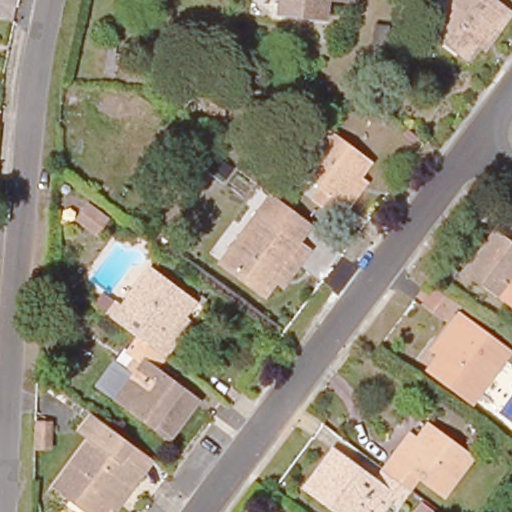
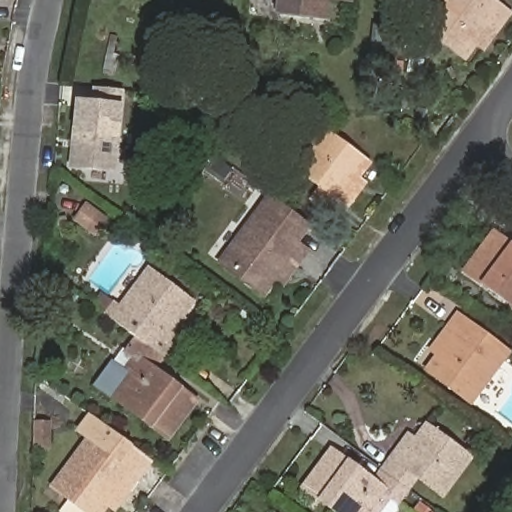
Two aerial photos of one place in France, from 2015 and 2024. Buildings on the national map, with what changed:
unchanged [(325,20),(277,15),(278,0),(326,0),(325,20)]
unchanged [(352,1),(337,0),(352,0),(352,1)]
unchanged [(422,25),(440,0),(490,0),(509,14),(499,27),(492,22),(477,43),(466,58),(422,25)]
unchanged [(132,49),(130,77),(114,77),(115,64),(107,65),(109,48),(132,49)]
new [(125,90),(116,173),(68,169),(75,100),(92,102),(94,87),(125,90)]
unchanged [(213,111),(230,112),(228,126),(211,125),(213,111)]
unchanged [(368,169),(357,183),(341,204),(348,210),(338,223),(313,204),(321,193),(298,175),(326,137),(368,169)]
unchanged [(213,154),(207,162),(197,154),(203,146),(213,154)]
unchanged [(297,269),(291,264),(275,286),(265,301),(220,268),(271,199),(278,204),(288,211),(311,228),(297,248),(308,255),(297,269)]
unchanged [(81,230),(92,215),(112,230),(101,244),(81,230)]
unchanged [(499,232),(512,242),(512,302),(470,271),(499,232)]
unchanged [(124,308),(153,270),(196,302),(179,324),(186,330),(167,356),(143,339),(129,328),(111,315),(119,305),(124,308)]
unchanged [(71,295),(68,322),(48,319),(52,292),(71,295)]
unchanged [(428,369),(455,334),(448,328),(458,315),(508,353),(472,402),(428,369)]
unchanged [(113,394),(140,357),(133,352),(143,339),(167,356),(157,368),(201,401),(174,438),(113,394)]
unchanged [(106,512),(82,512),(54,491),(90,443),(79,435),(91,419),(152,464),(135,486),(131,491),(125,487),(106,512)]
unchanged [(50,448),(34,448),(35,423),(51,423),(50,448)]
unchanged [(394,456),(400,461),(416,439),(427,425),(470,457),(443,495),(418,476),(408,488),(391,475),(383,469),(394,456)]
unchanged [(378,512),(352,512),(341,503),(336,510),(304,487),(332,450),(350,464),(345,470),(357,479),(362,473),(374,482),(383,469),(391,475),(408,488),(398,501),(391,496),(378,512)]

